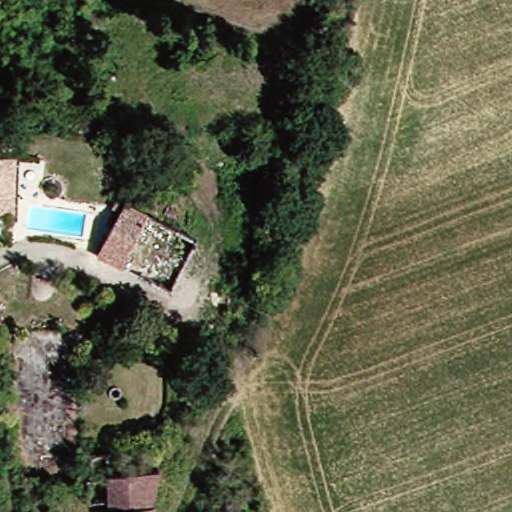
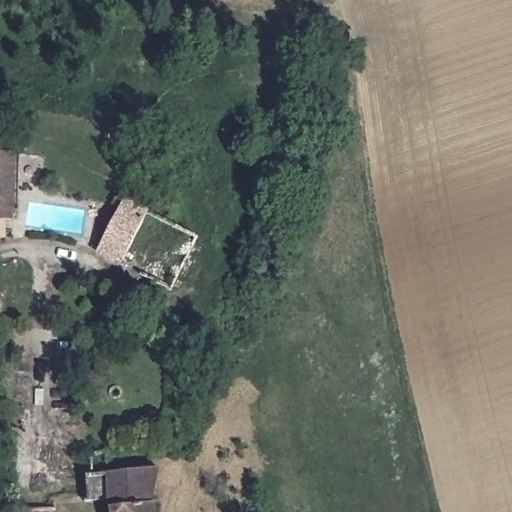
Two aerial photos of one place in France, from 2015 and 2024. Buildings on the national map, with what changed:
unchanged [(26,207),(0,209),(0,156),(20,155),(26,207)]
unchanged [(135,199),(209,238),(197,258),(143,231),(128,263),(108,253),(135,199)]
unchanged [(121,503),(118,501),(117,471),(168,468),(166,502),(166,512),(121,512),(121,503)]

